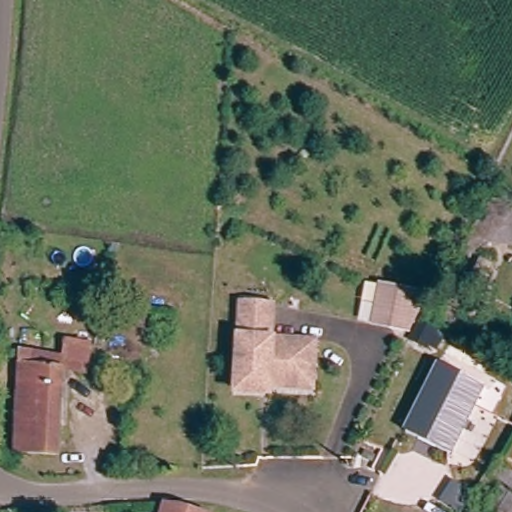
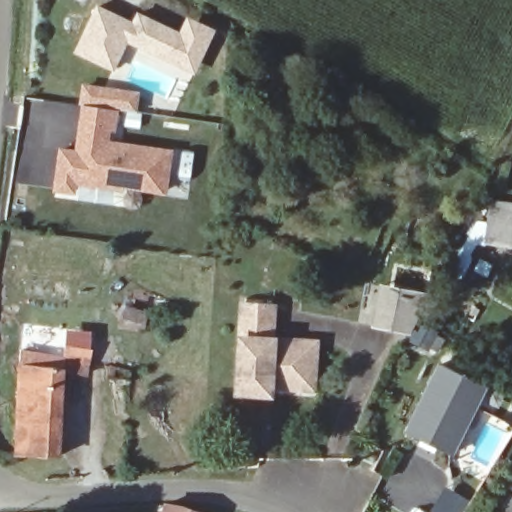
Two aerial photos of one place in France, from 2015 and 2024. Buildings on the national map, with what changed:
new [(131,21),(137,11),(179,32),(187,15),(217,29),(195,75),(128,44),(113,71),(73,53),(96,3),(131,21)]
new [(139,91),(137,111),(119,110),(116,132),(111,131),(111,139),(173,149),(168,195),(76,186),(76,194),(54,191),(59,145),(75,146),(81,83),(139,91)]
unchanged [(494,198),(512,200),(512,242),(497,240),(469,236),(494,198)]
unchanged [(383,319),(367,311),(384,276),(401,284),(427,297),(409,333),(383,319)]
unchanged [(304,384),(273,382),(272,390),(239,387),(245,305),(275,307),(273,335),(318,339),(316,363),(314,385),(304,384)]
unchanged [(149,311),(144,329),(131,326),(135,308),(149,311)]
unchanged [(68,337),(92,341),(88,369),(74,366),(74,356),(65,355),(68,337)]
unchanged [(21,347),(62,355),(59,451),(17,448),(21,347)]
unchanged [(446,355),(489,376),(454,446),(411,424),(446,355)]
unchanged [(110,367),(132,371),(131,379),(128,378),(127,382),(108,378),(110,367)]
unchanged [(501,509),(512,492),(512,512),(506,512),(501,509)]
unchanged [(165,507),(165,508),(185,512),(164,512),(165,507)]
unchanged [(487,507),(494,512),(483,512),(487,507)]

